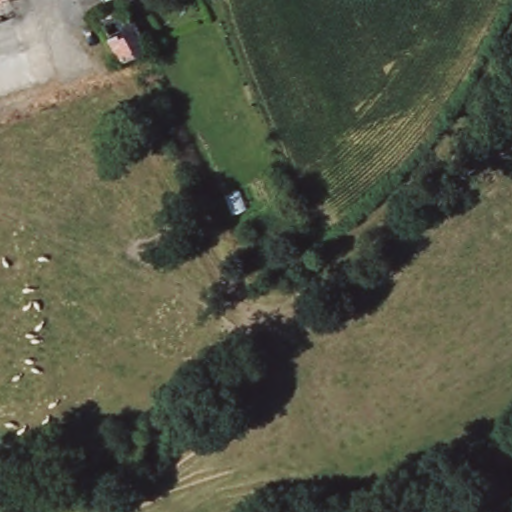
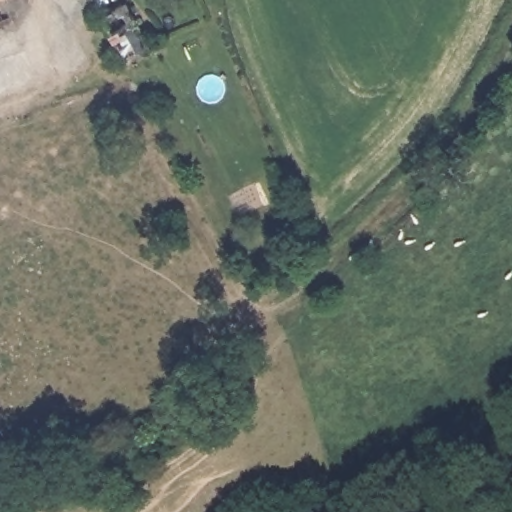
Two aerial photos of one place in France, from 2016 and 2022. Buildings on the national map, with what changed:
unchanged [(105,19),(133,7),(152,46),(126,58),(105,19)]

